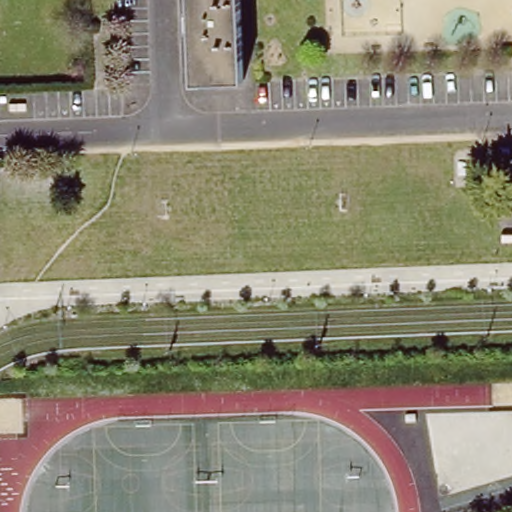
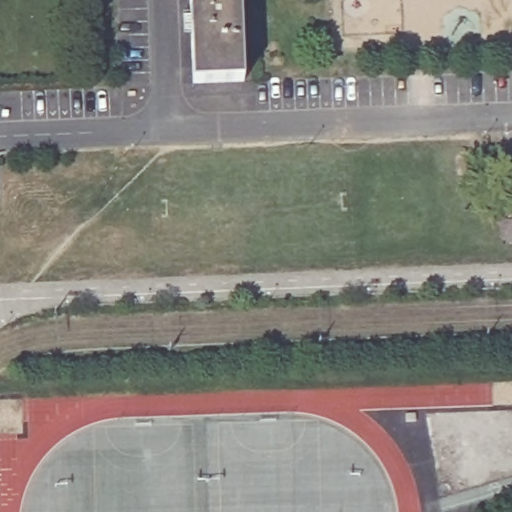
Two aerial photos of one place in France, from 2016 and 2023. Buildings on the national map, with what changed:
unchanged [(191,85),(188,0),(238,0),(241,83),(191,85)]

